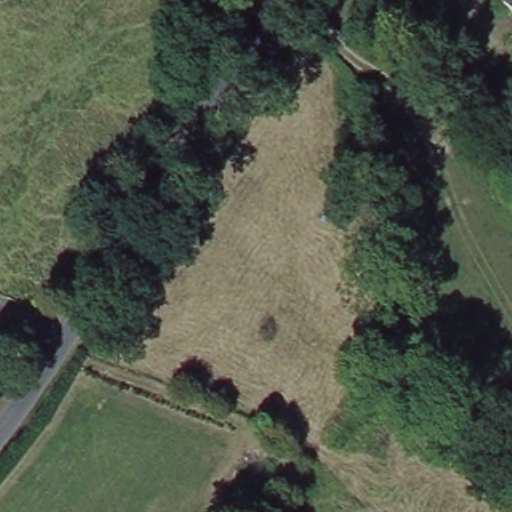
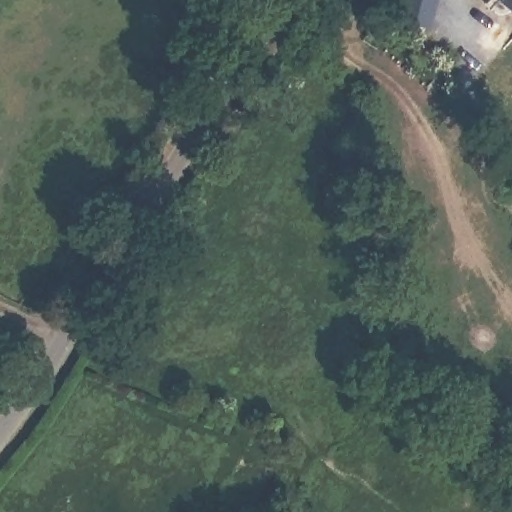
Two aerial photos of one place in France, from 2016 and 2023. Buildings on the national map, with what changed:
unchanged [(497,0),(512,0),(512,9),(497,0)]

